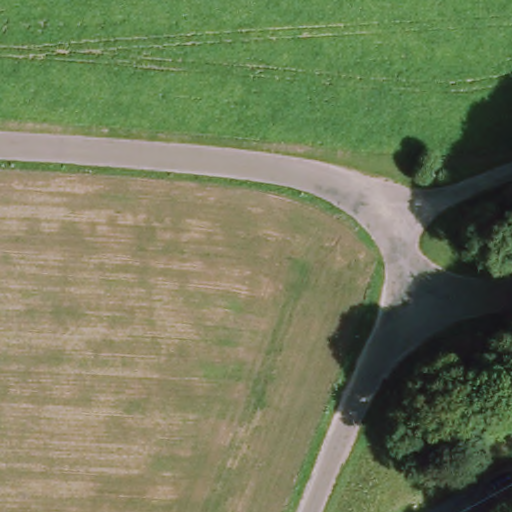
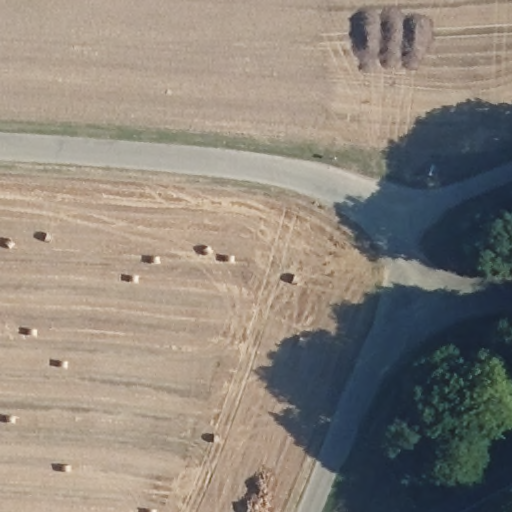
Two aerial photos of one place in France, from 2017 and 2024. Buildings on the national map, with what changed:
unchanged [(442,161),(440,171),(430,169),(433,159),(442,161)]

